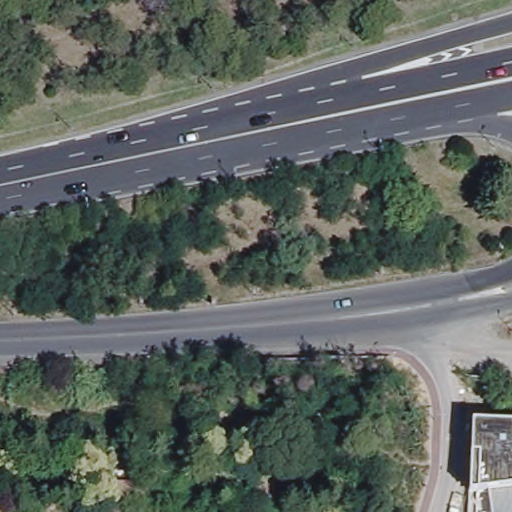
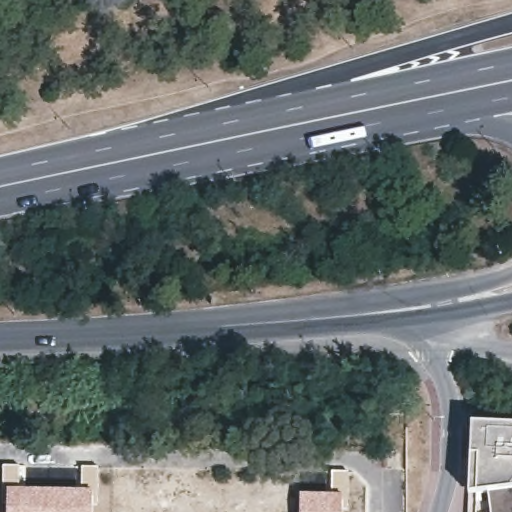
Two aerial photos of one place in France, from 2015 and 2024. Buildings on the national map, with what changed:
unchanged [(469,493),(472,421),(512,423),(512,512),(468,512),(469,493)]
new [(98,504),(92,504),(92,512),(7,512),(9,484),(5,484),(3,484),(3,465),(20,466),(20,484),(20,489),(81,489),(81,467),(98,467),(98,504)]
new [(301,494),(332,494),(334,471),(349,472),(349,509),(344,510),(343,512),(301,512),(301,494)]
unchanged [(141,479),(141,497),(110,496),(111,478),(141,479)]
unchanged [(276,479),(276,497),(248,497),(249,478),(276,479)]

